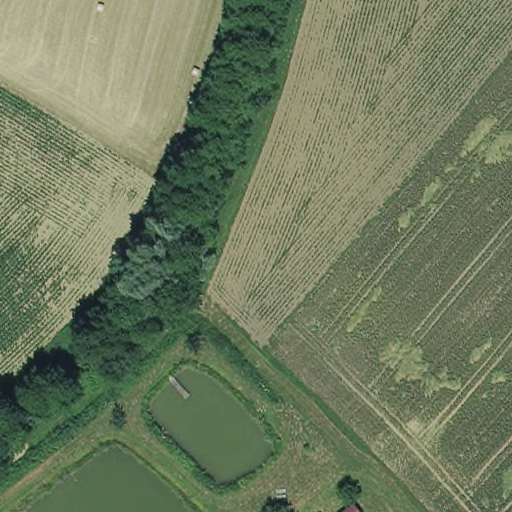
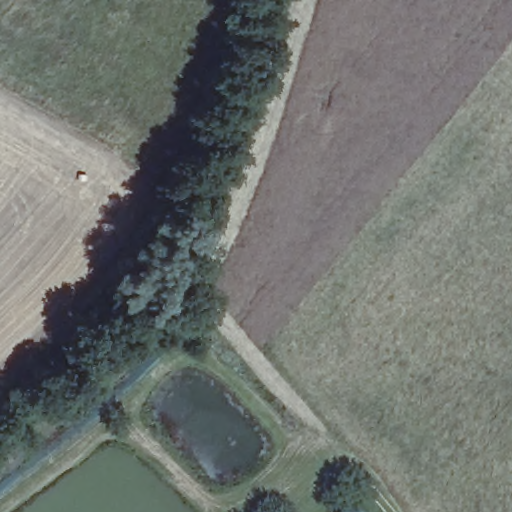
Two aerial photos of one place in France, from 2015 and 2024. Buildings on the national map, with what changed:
unchanged [(343,512),(354,503),(362,512),(343,512)]

